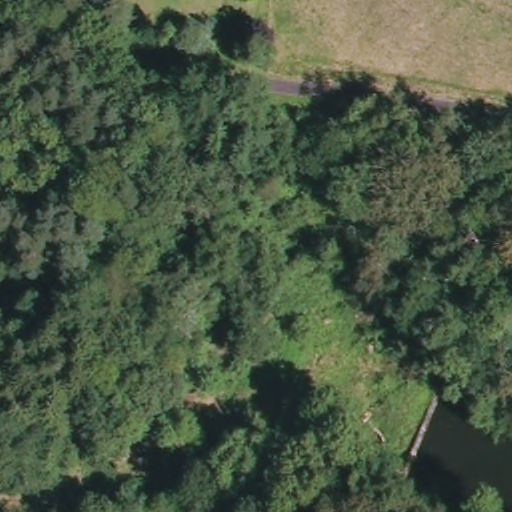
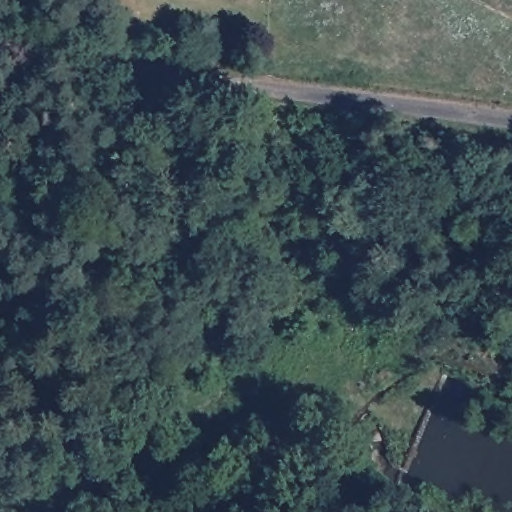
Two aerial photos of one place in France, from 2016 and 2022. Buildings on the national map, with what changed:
[]

